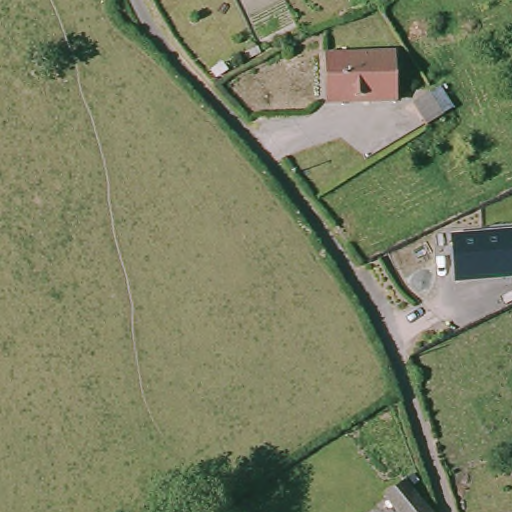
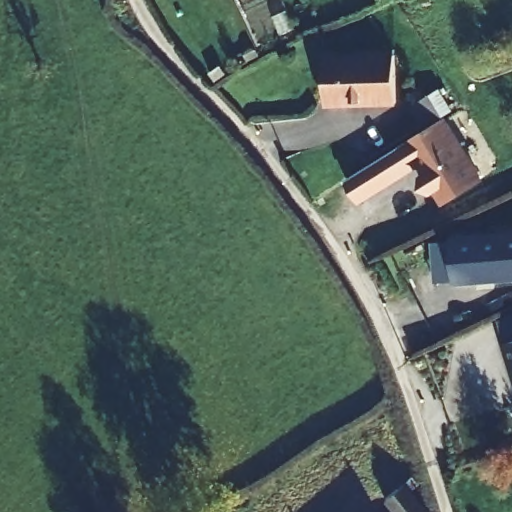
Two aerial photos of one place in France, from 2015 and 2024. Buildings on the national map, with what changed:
unchanged [(334,108),(329,60),(391,53),(396,101),(375,104),(346,106),(334,108)]
new [(421,175),(359,204),(346,182),(418,136),(427,128),(412,105),(440,88),(454,111),(446,116),(485,178),(443,205),(421,175)]
unchanged [(450,235),(512,230),(512,278),(454,283),(450,235)]
new [(507,342),(498,318),(512,311),(512,368),(504,343),(507,342)]
unchanged [(417,512),(397,512),(388,501),(401,491),(417,512)]

